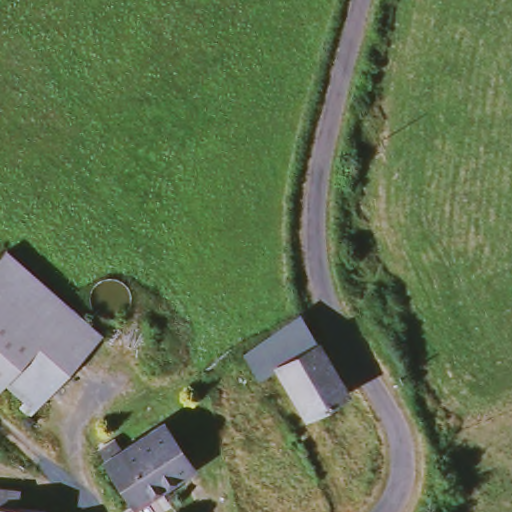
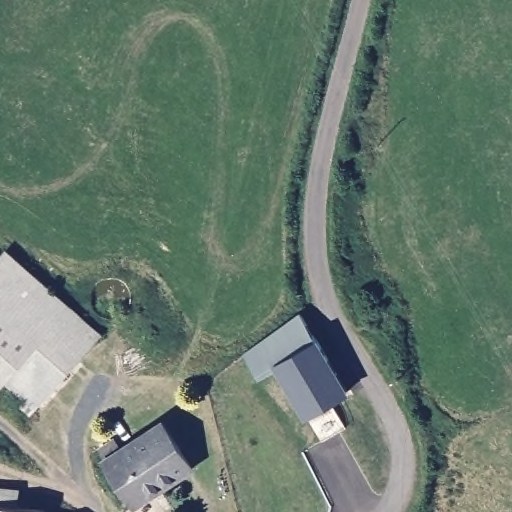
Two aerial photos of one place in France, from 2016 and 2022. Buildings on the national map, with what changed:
unchanged [(11,255),(102,341),(33,413),(6,386),(0,392),(0,266),(11,255)]
unchanged [(299,312),(316,340),(319,338),(351,391),(306,419),(276,366),(256,378),(243,356),(299,312)]
unchanged [(191,466),(136,505),(107,462),(109,461),(102,450),(116,440),(123,450),(163,424),(191,466)]
unchanged [(18,490),(15,503),(49,508),(49,512),(0,512),(0,488),(18,490)]

